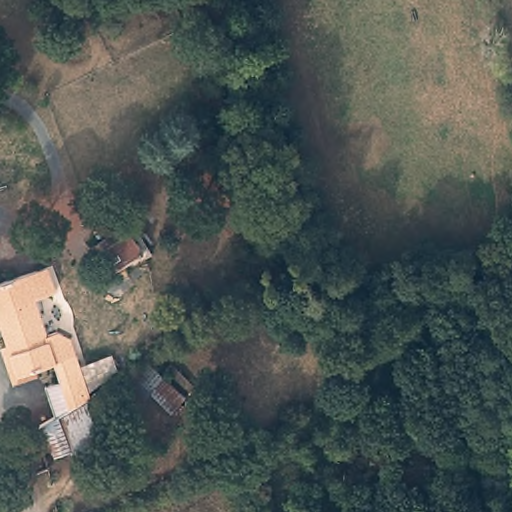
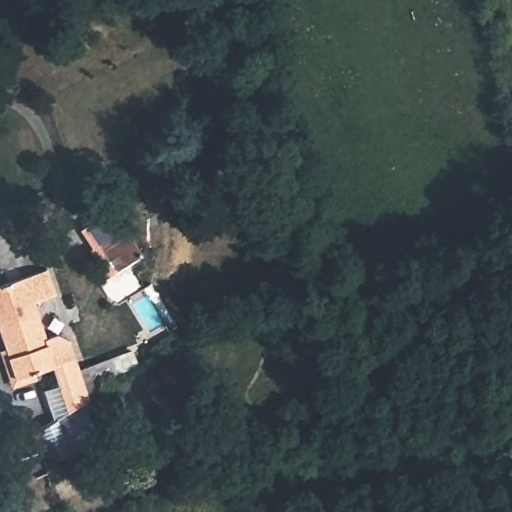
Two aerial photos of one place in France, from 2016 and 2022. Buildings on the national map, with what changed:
unchanged [(101,278),(81,250),(127,223),(144,252),(101,278)]
unchanged [(16,383),(5,347),(11,346),(0,311),(0,285),(51,268),(59,291),(38,297),(50,334),(61,331),(73,337),(79,355),(39,367),(41,375),(16,383)]
unchanged [(51,457),(39,420),(69,410),(90,407),(102,444),(51,457)]

